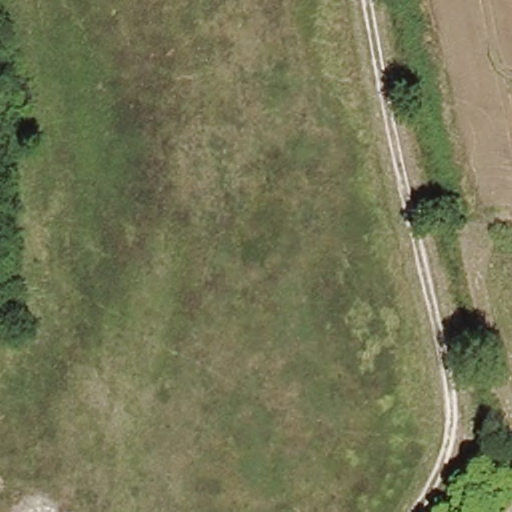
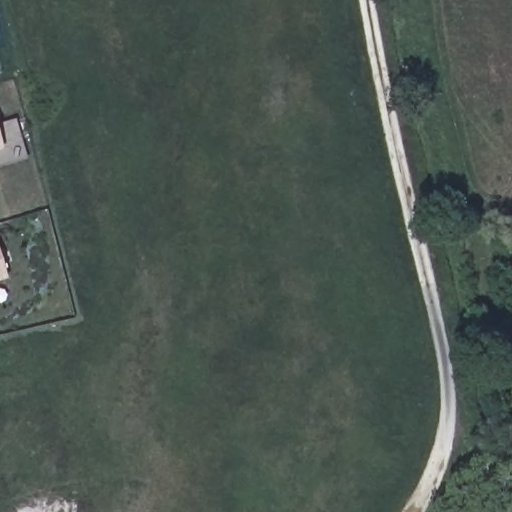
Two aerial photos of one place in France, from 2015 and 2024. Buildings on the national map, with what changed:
new [(0,151),(0,140),(3,150),(0,151)]
new [(0,281),(0,251),(8,278),(0,281)]

